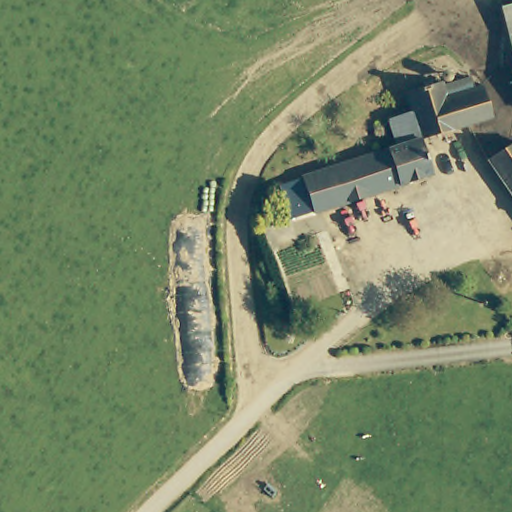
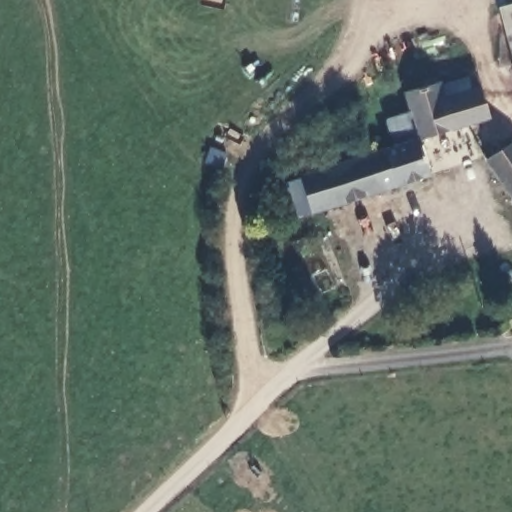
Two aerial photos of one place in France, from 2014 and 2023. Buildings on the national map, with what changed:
unchanged [(512,11),(512,43),(503,45),(495,16),(512,11)]
unchanged [(512,43),(512,74),(503,45),(512,43)]
unchanged [(367,157),(394,147),(383,120),(388,118),(407,111),(402,94),(401,86),(435,78),(436,83),(457,77),(464,75),(467,86),(474,84),(486,115),(416,139),(428,172),(426,173),(408,179),(378,189),(367,157)]
unchanged [(512,137),(512,198),(483,156),(512,137)]
unchanged [(282,190),(300,180),(353,161),(367,157),(378,189),(309,211),(290,211),(282,190)]

